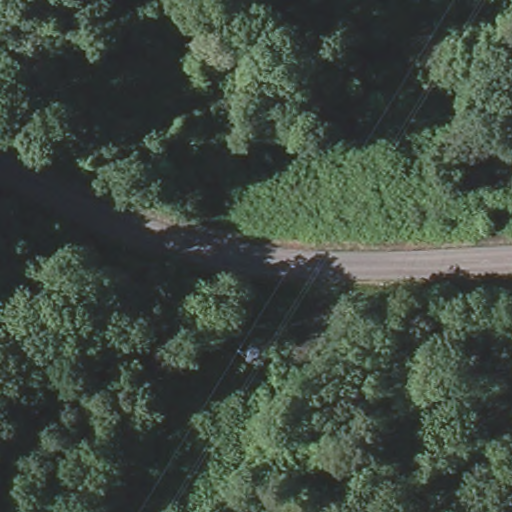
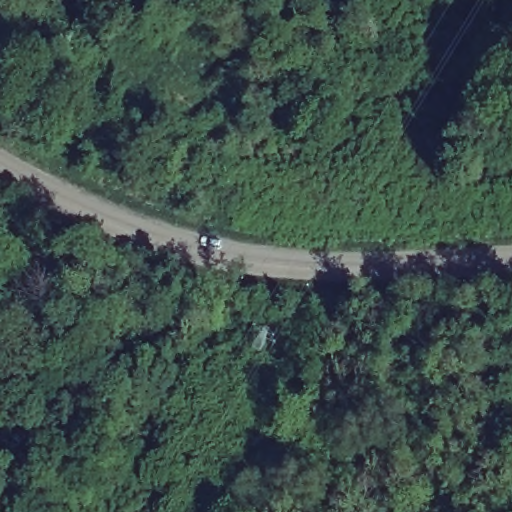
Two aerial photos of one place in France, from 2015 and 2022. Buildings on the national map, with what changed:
unchanged [(2,227),(0,225),(0,205),(11,211),(2,227)]

